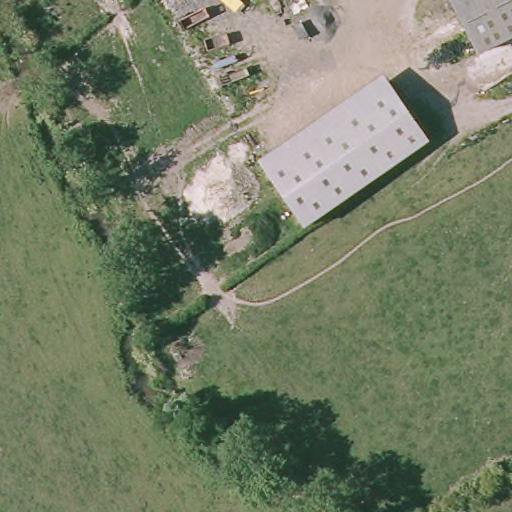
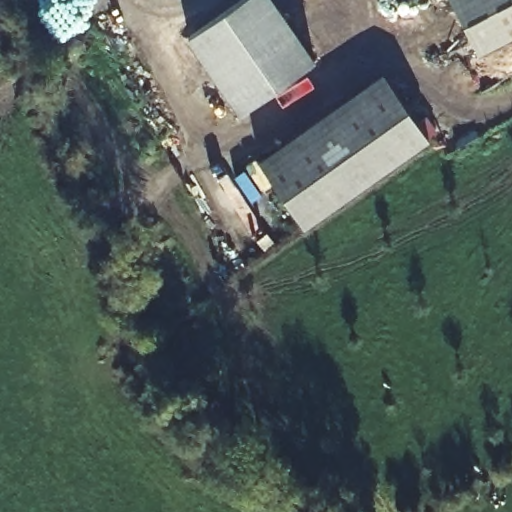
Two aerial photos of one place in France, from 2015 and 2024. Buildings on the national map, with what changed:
new [(319,54),(241,107),(193,27),(230,0),(284,0),(319,54)]
unchanged [(461,0),(512,0),(512,29),(482,43),(461,0)]
unchanged [(430,139),(305,226),(258,158),(384,72),(430,139)]

